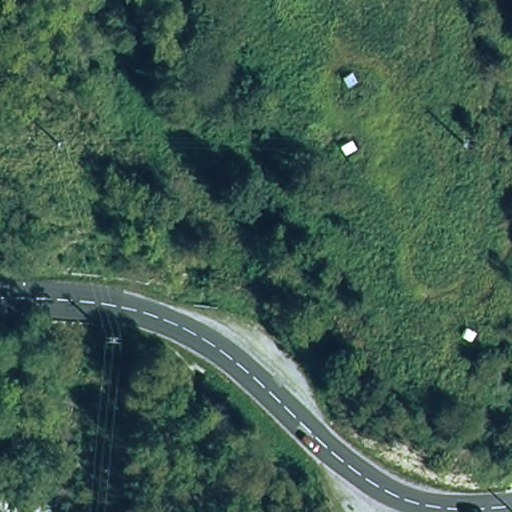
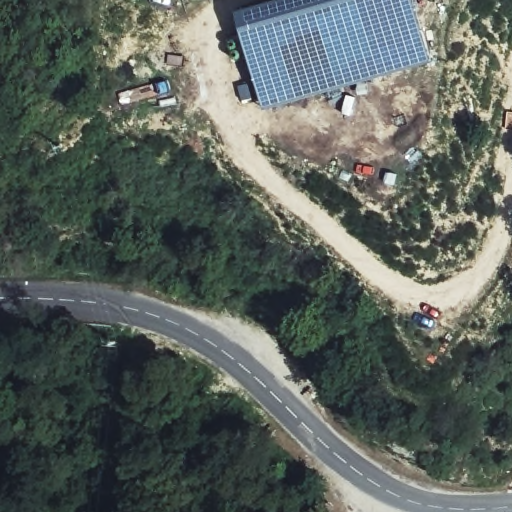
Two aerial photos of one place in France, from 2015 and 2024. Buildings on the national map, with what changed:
new [(262,109),(234,11),(276,0),(414,0),(432,61),(262,109)]

